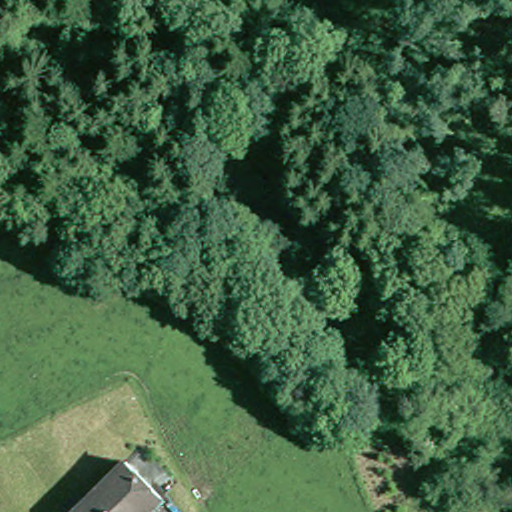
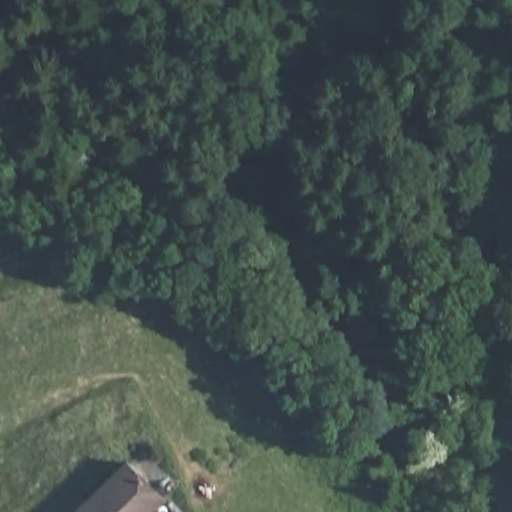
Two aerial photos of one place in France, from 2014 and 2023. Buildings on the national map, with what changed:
unchanged [(122,475),(137,463),(180,507),(175,512),(160,512),(158,510),(122,475)]
unchanged [(157,512),(77,512),(122,475),(158,510),(157,512)]

